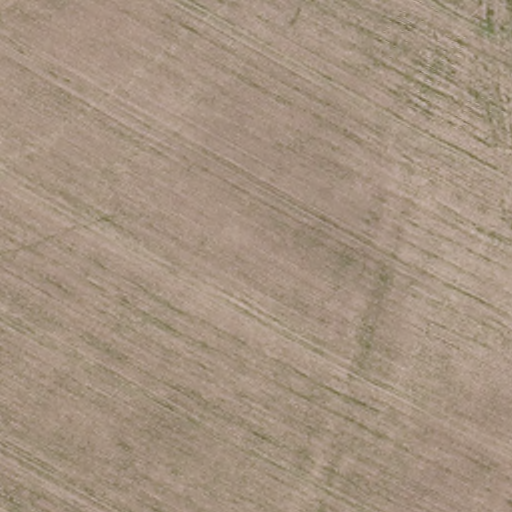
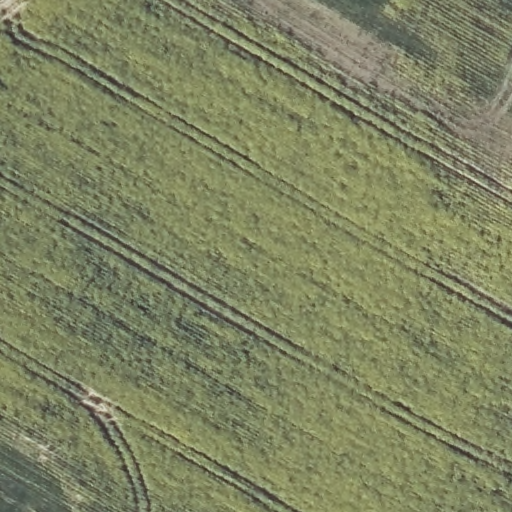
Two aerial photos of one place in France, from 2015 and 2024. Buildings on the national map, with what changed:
[]

